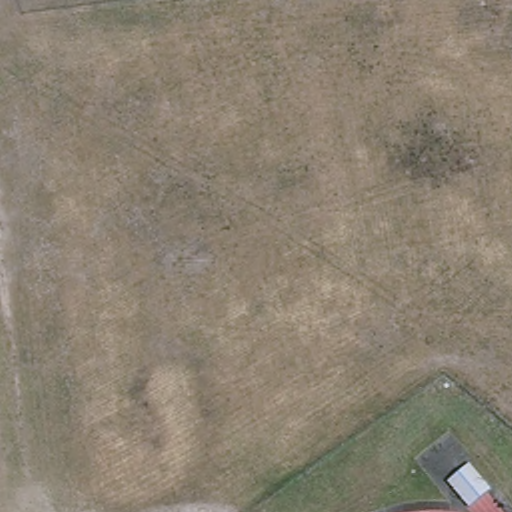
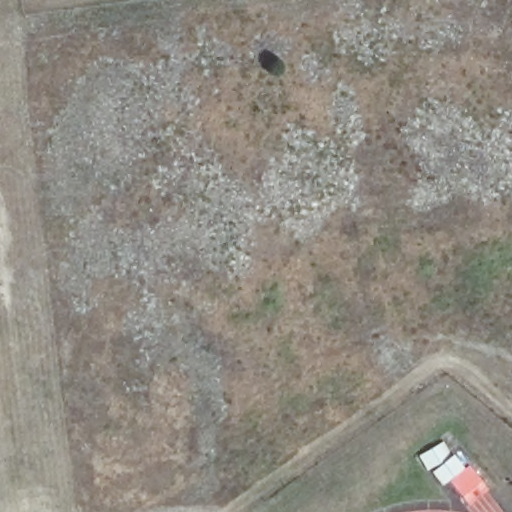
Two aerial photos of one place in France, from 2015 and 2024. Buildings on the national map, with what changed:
unchanged [(469,463),(491,490),(487,493),(467,509),(447,480),(469,463)]

